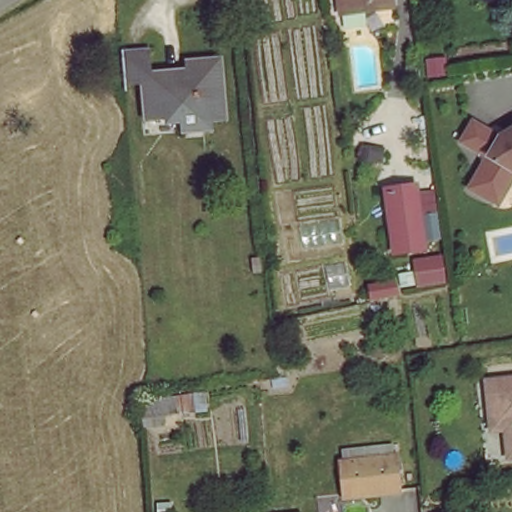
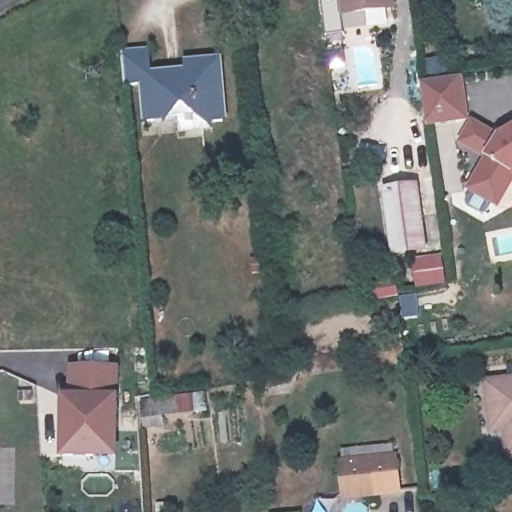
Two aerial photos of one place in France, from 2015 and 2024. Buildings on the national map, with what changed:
unchanged [(397,10),(348,18),(345,0),(395,0),(397,10)]
unchanged [(153,66),(156,92),(189,90),(190,75),(223,71),(229,130),(208,134),(205,121),(188,122),(190,131),(151,135),(146,96),(126,96),(123,67),(153,66)]
new [(461,73),(466,114),(427,121),(421,80),(461,73)]
unchanged [(466,191),(482,159),(455,145),(465,126),(492,139),(511,127),(508,122),(512,119),(512,174),(509,176),(494,206),(466,191)]
unchanged [(421,250),(389,254),(379,189),(412,185),(421,250)]
unchanged [(365,279),(395,272),(397,294),(371,300),(365,279)]
new [(115,360),(115,448),(64,449),(63,390),(71,390),(71,360),(115,360)]
unchanged [(492,420),(487,384),(512,380),(512,461),(508,434),(493,434),(492,420)]
unchanged [(208,425),(143,434),(141,401),(203,397),(208,425)]
unchanged [(397,490),(340,496),(336,457),(395,452),(397,490)]

